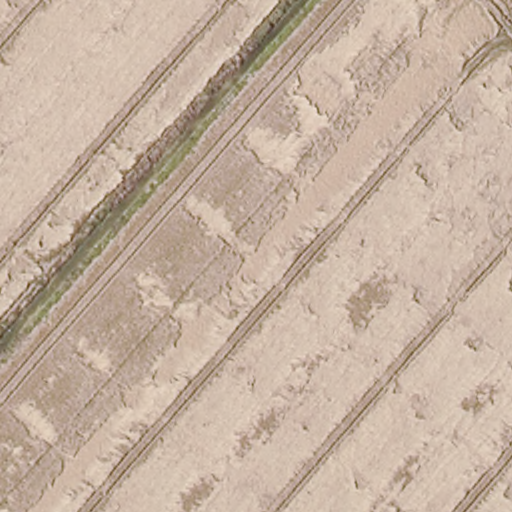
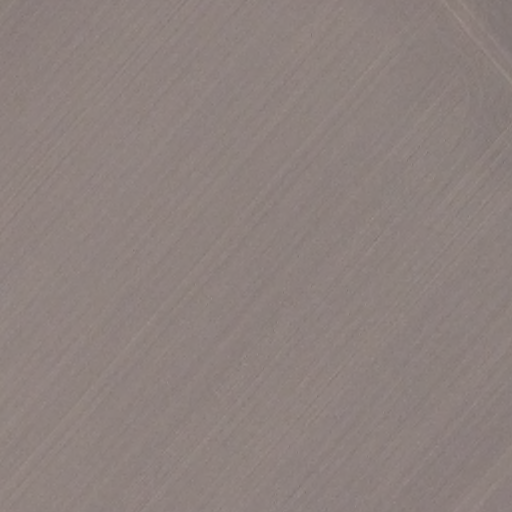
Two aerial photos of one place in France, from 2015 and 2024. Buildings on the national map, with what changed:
[]

